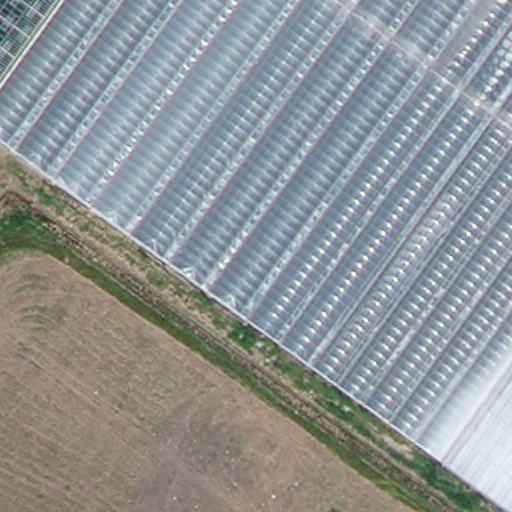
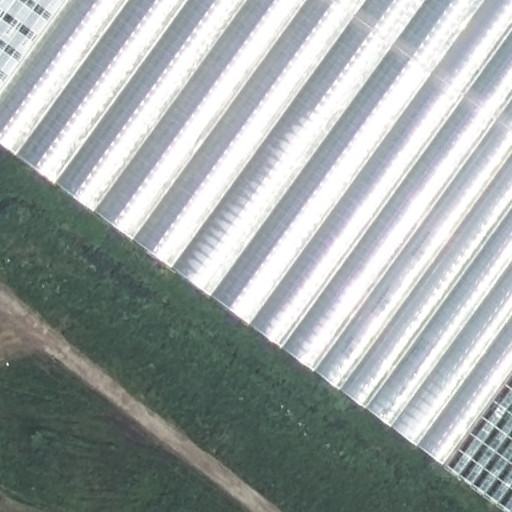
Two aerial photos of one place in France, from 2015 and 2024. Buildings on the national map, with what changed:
unchanged [(0,0),(72,0),(0,102),(0,0)]
unchanged [(188,0),(56,180),(0,139),(0,102),(72,0),(188,0)]
unchanged [(56,180),(188,0),(512,0),(512,512),(56,180)]

